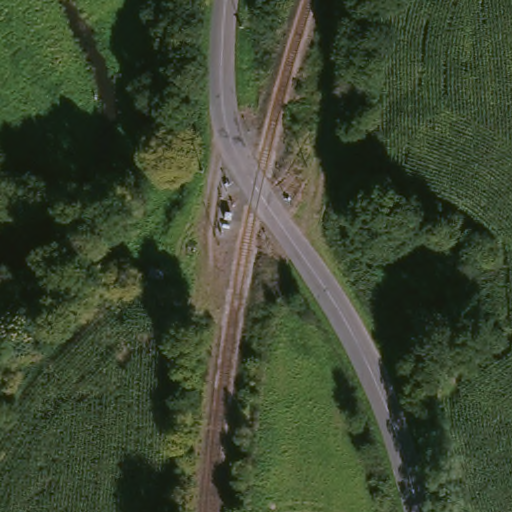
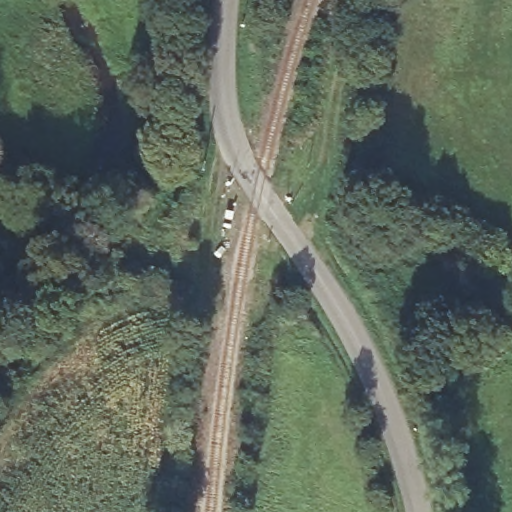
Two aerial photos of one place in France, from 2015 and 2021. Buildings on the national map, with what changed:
unchanged [(125,265),(128,253),(141,197),(160,173),(172,179),(190,187),(167,221),(163,265),(162,269),(125,265)]

